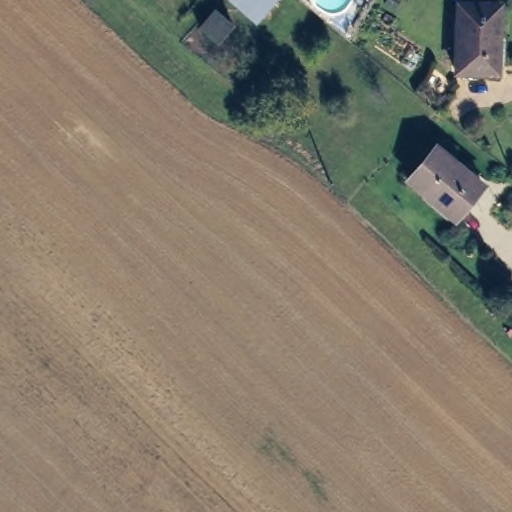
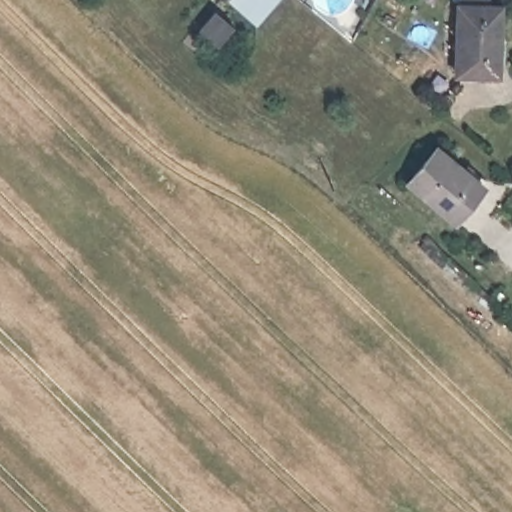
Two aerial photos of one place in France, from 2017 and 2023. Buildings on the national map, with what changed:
unchanged [(259,32),(233,2),(234,0),(287,0),(259,32)]
unchanged [(507,72),(463,70),(466,0),(509,0),(507,72)]
unchanged [(198,29),(214,11),(231,27),(217,44),(198,29)]
unchanged [(408,182),(437,147),(486,187),(457,222),(408,182)]

